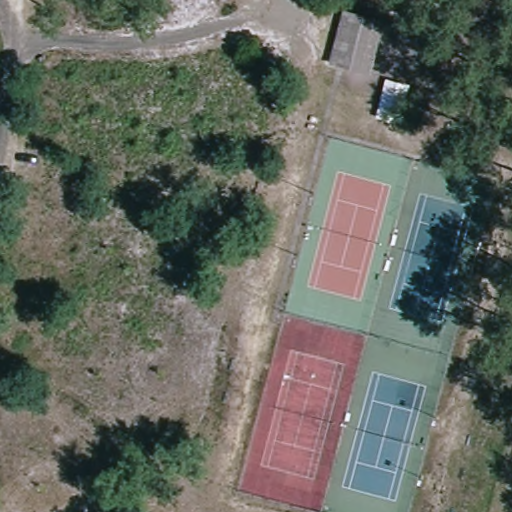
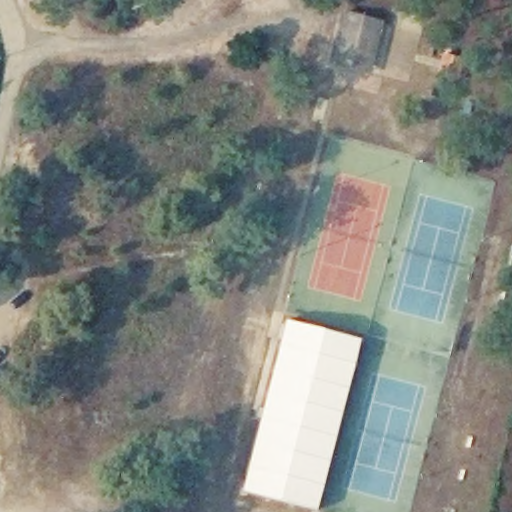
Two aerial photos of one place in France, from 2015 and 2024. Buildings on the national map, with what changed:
unchanged [(350,67),(332,62),(346,13),(382,24),(370,65),(368,72),(350,67)]
unchanged [(454,77),(435,71),(439,57),(458,62),(454,77)]
new [(285,320),(360,339),(316,510),(241,490),(285,320)]

